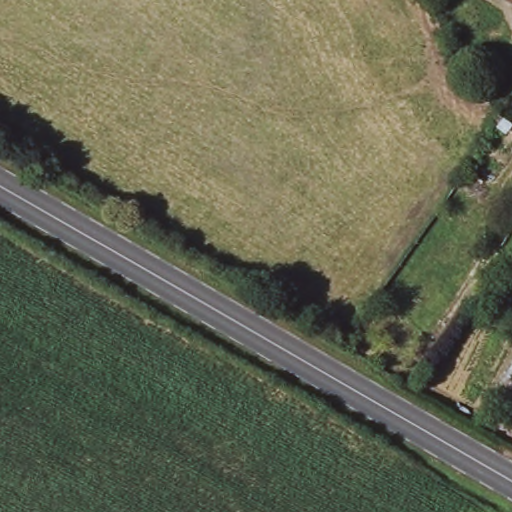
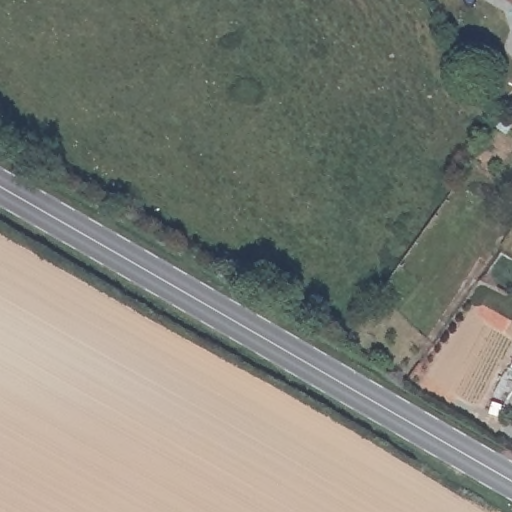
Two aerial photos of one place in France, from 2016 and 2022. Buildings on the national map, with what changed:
unchanged [(512,5),(503,0),(512,0),(512,5)]

